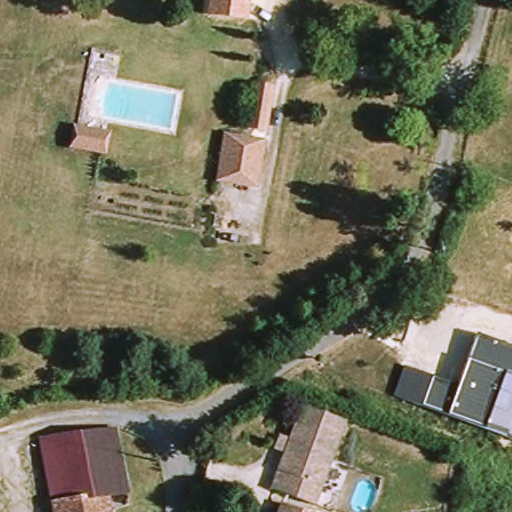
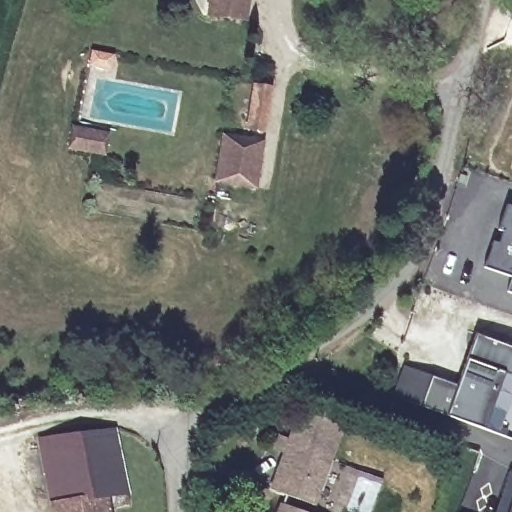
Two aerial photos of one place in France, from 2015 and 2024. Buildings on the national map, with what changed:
unchanged [(249,0),(245,19),(211,14),(213,0),(249,0)]
unchanged [(256,84),(275,87),(268,131),(249,127),(256,84)]
unchanged [(107,135),(104,155),(66,150),(69,130),(107,135)]
unchanged [(260,142),(253,185),(215,179),(221,137),(260,142)]
new [(493,242),(500,244),(502,232),(499,231),(507,205),(512,206),(512,277),(485,267),(493,242)]
new [(512,277),(512,293),(508,292),(512,277)]
unchanged [(512,438),(392,397),(404,366),(459,385),(476,333),(512,346),(512,438)]
unchanged [(313,505),(270,490),(301,405),(344,421),(313,505)]
unchanged [(116,435),(118,436),(131,510),(122,512),(56,512),(42,442),(116,435)]
new [(512,493),(512,512),(506,512),(510,500),(512,493)]
unchanged [(308,512),(289,512),(291,506),(308,512)]

